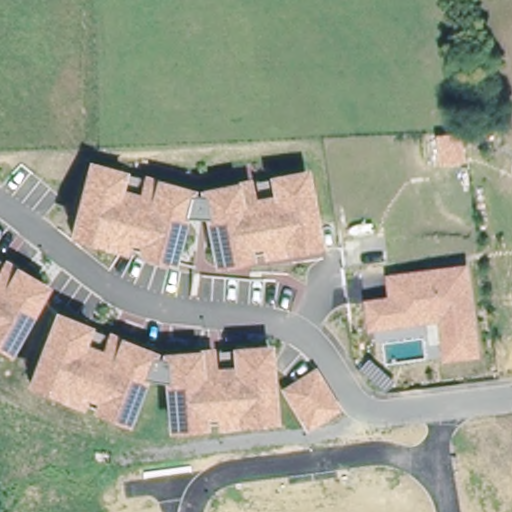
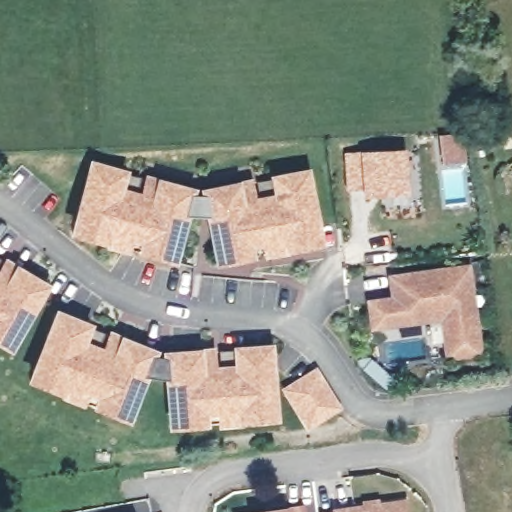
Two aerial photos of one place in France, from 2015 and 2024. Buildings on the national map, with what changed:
new [(360,151),(405,148),(407,193),(362,196),(362,188),(347,190),(344,153),(360,151)]
unchanged [(195,189),(269,175),(310,167),(323,249),(264,259),(260,246),(251,248),(255,263),(214,270),(207,218),(189,218),(175,267),(135,258),(138,246),(130,244),(126,254),(66,236),(87,160),(195,189)]
unchanged [(6,257),(50,285),(11,355),(0,348),(0,254),(6,257)]
unchanged [(389,294),(386,273),(471,263),(482,356),(444,360),(440,320),(368,331),(365,299),(389,294)]
unchanged [(85,319),(160,351),(232,348),(272,343),(281,424),(216,429),(214,415),(208,414),(208,429),(165,432),(162,378),(149,377),(129,426),(91,411),(94,399),(86,395),(82,407),(24,383),(53,308),(85,319)]
unchanged [(342,409),(306,431),(279,387),(316,366),(342,409)]
unchanged [(298,496),(302,512),(233,512),(232,508),(298,496)]
new [(332,509),(332,506),(360,503),(359,499),(379,497),(379,501),(407,498),(409,512),(320,512),(332,509)]

